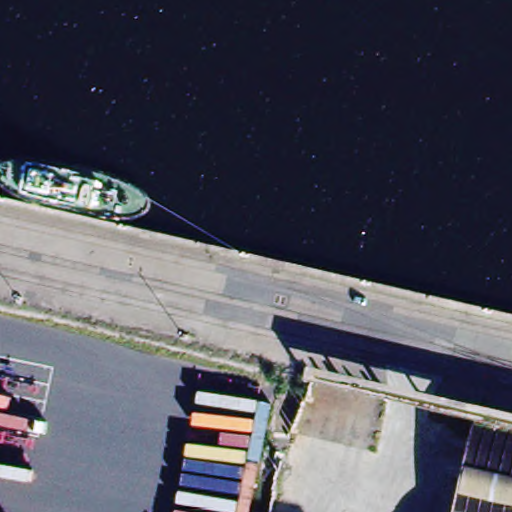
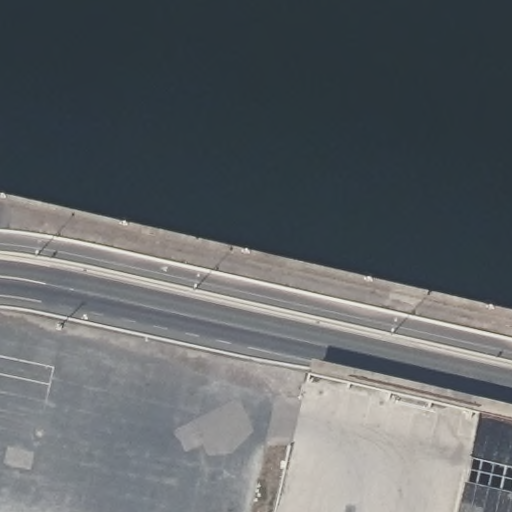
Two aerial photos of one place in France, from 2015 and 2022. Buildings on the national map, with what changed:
unchanged [(512,438),(512,512),(464,512),(482,431),(512,438)]

